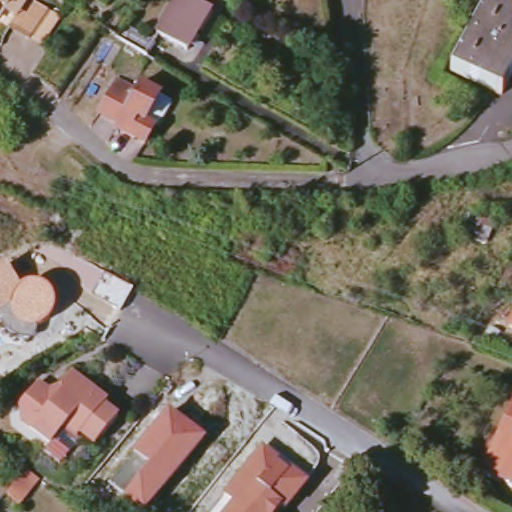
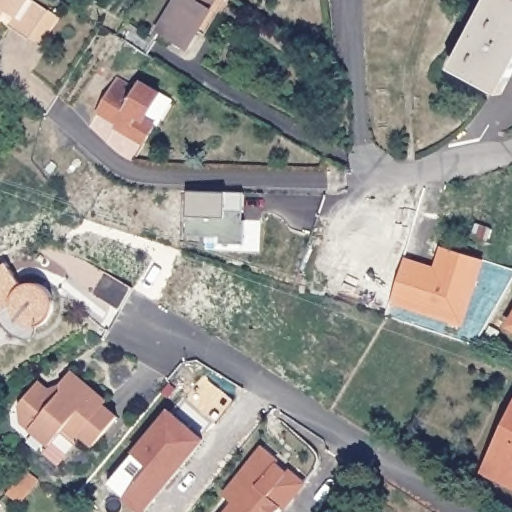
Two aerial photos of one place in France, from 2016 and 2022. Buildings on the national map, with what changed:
unchanged [(0,9),(0,0),(21,0),(11,15),(0,9)]
unchanged [(0,41),(0,37),(24,0),(28,0),(46,12),(59,20),(32,62),(19,54),(0,41)]
unchanged [(214,11),(191,50),(162,34),(181,0),(201,0),(200,2),(214,11)]
unchanged [(512,0),(512,78),(503,95),(452,70),(488,0),(512,0)]
unchanged [(122,39),(130,26),(161,44),(152,56),(122,39)]
unchanged [(120,122),(102,111),(120,80),(138,90),(142,83),(162,94),(147,120),(157,127),(147,144),(117,126),(120,122)]
new [(244,244),(220,244),(220,236),(186,234),(187,190),(243,192),(244,244)]
new [(483,261),(465,326),(391,302),(405,259),(436,269),(442,248),(483,261)]
unchanged [(27,285),(32,283),(38,282),(42,282),(44,283),(47,284),(52,285),(54,288),(55,289),(57,291),(59,294),(60,297),(61,299),(61,302),(62,304),(62,307),(61,308),(61,311),(60,314),(58,317),(56,319),(54,322),(52,323),(50,324),(47,325),(46,327),(42,327),(40,328),(35,327),(32,326),(30,325),(27,324),(26,324),(24,322),(22,320),(20,318),(19,315),(17,313),(17,309),(16,306),(0,316),(0,270),(12,262),(27,285)]
new [(111,274),(137,290),(125,312),(98,296),(111,274)]
unchanged [(82,437),(78,441),(67,431),(52,448),(22,423),(21,407),(40,384),(58,400),(64,394),(63,387),(73,376),(109,406),(105,409),(120,422),(96,449),(82,437)]
unchanged [(482,471),(512,409),(512,486),(482,471)]
unchanged [(206,441),(146,512),(143,512),(111,486),(171,414),(206,441)]
unchanged [(260,450),(276,463),(272,468),(282,477),(287,472),(302,486),(281,511),(277,508),(273,512),(224,512),(231,504),(221,496),(260,450)]
unchanged [(37,480),(19,504),(6,493),(10,488),(23,471),(37,480)]

